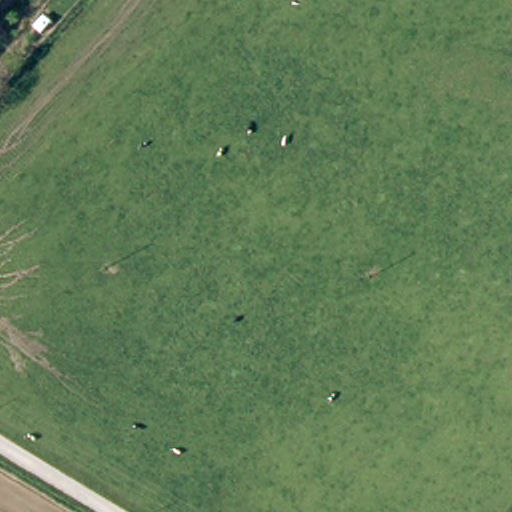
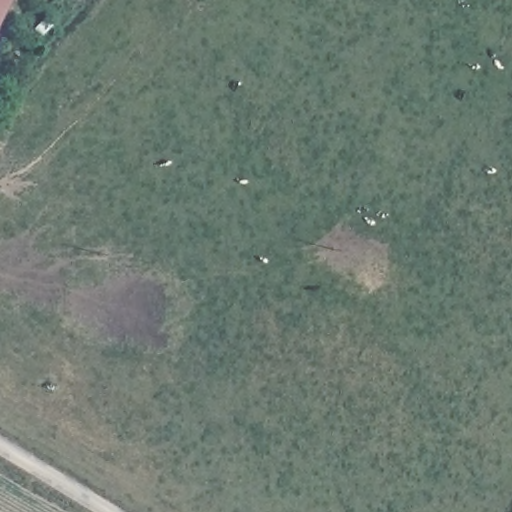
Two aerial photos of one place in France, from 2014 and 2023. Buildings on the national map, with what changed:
unchanged [(6,0),(0,11),(0,0),(6,0)]

